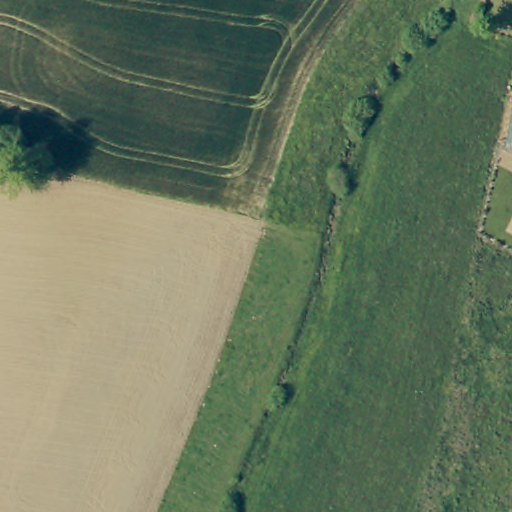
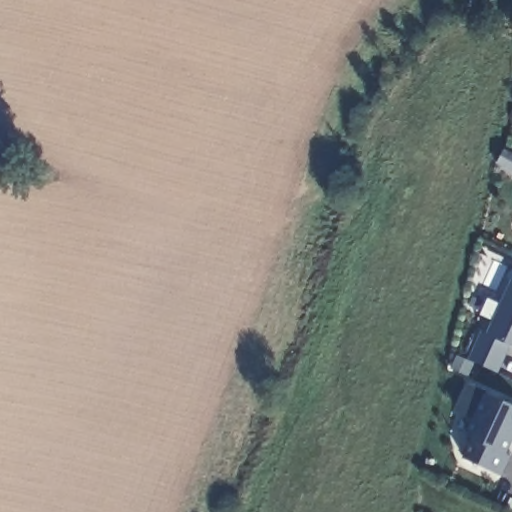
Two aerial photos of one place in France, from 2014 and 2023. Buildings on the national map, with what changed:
unchanged [(468,360),(481,332),(487,334),(511,278),(512,278),(512,348),(510,348),(497,373),(468,360)]
new [(462,458),(471,439),(464,437),(472,419),(456,411),(470,383),(512,404),(512,443),(507,453),(512,456),(512,457),(502,478),(462,458)]

